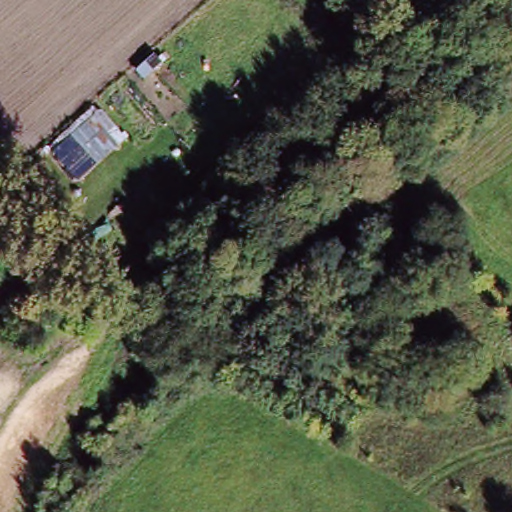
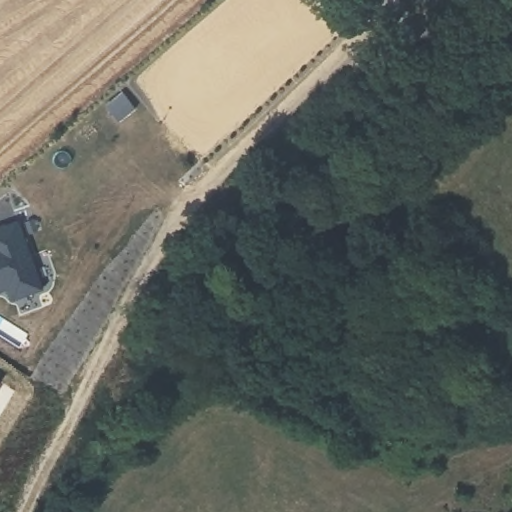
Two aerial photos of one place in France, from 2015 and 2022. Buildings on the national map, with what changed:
new [(16,222),(41,285),(10,298),(5,284),(0,287),(0,228),(16,222)]

